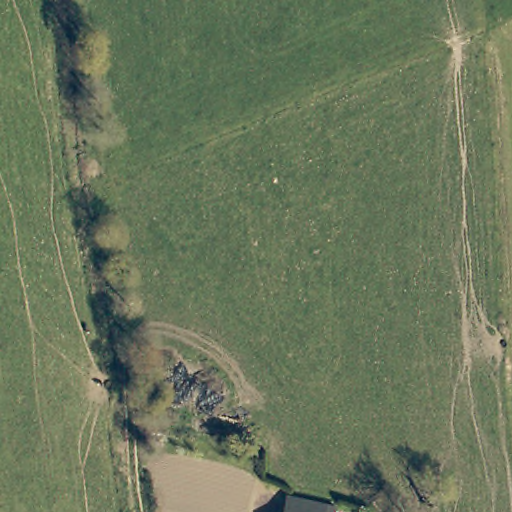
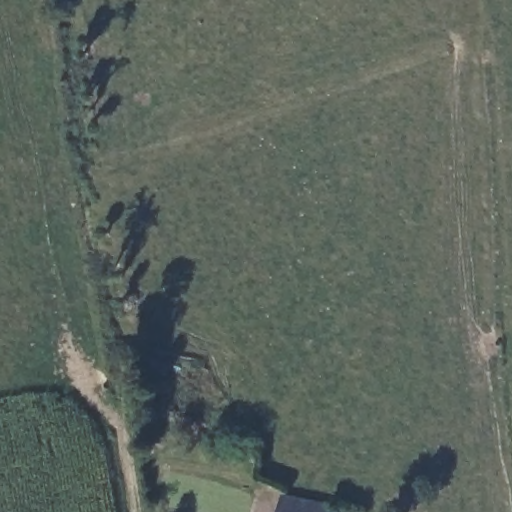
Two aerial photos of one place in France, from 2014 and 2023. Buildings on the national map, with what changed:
unchanged [(286,493),(333,503),(332,512),(282,512),(286,493)]

